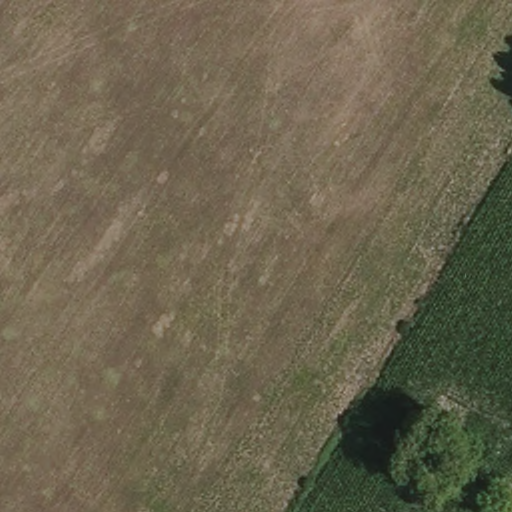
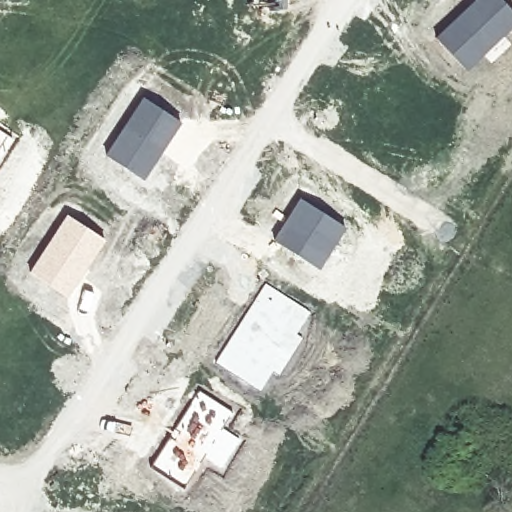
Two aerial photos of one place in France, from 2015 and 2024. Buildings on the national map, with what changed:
new [(512,9),(512,28),(467,69),(434,35),(472,0),(504,0),(512,9)]
new [(142,95),(181,120),(143,180),(104,152),(142,95)]
new [(299,195),(346,225),(319,268),(272,237),(299,195)]
new [(66,211),(106,239),(66,298),(27,271),(66,211)]
new [(265,281),(313,311),(299,332),(304,335),(280,375),(274,370),(260,391),(214,360),(265,281)]

